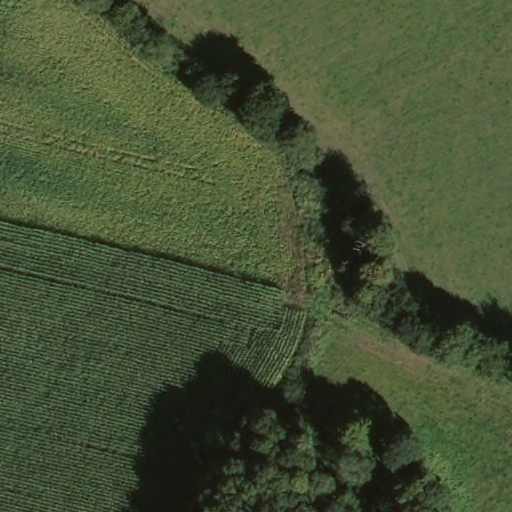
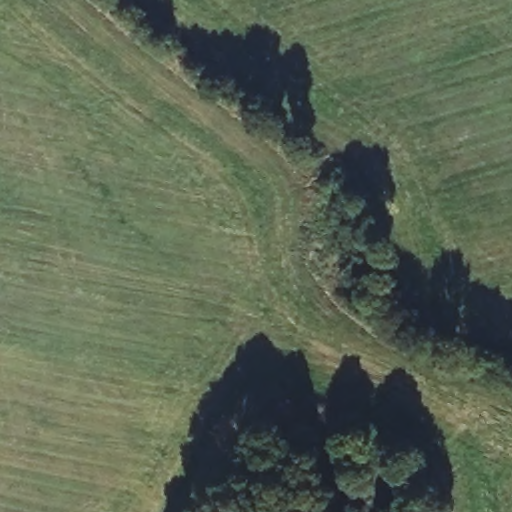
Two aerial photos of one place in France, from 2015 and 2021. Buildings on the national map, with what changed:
[]

